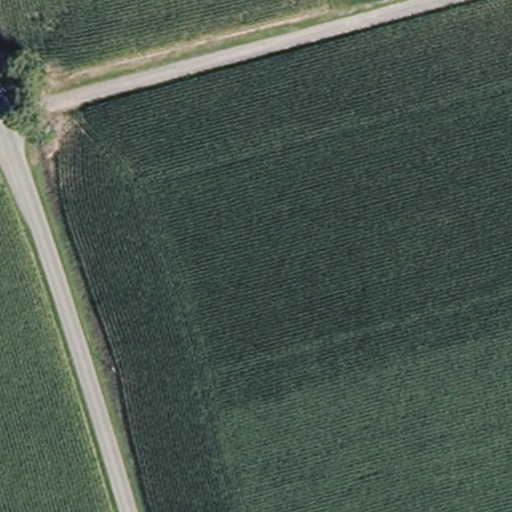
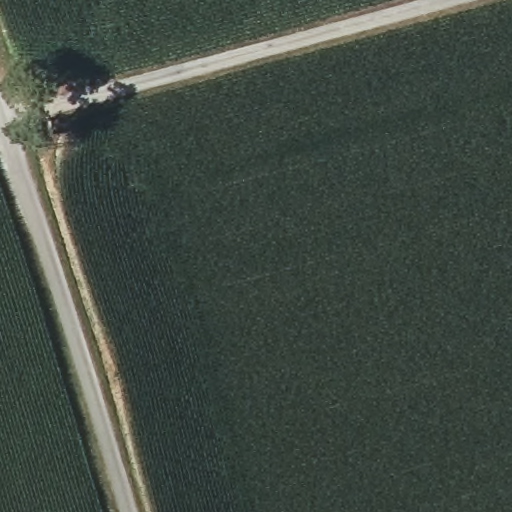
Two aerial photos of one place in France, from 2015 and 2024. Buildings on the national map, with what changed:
[]

